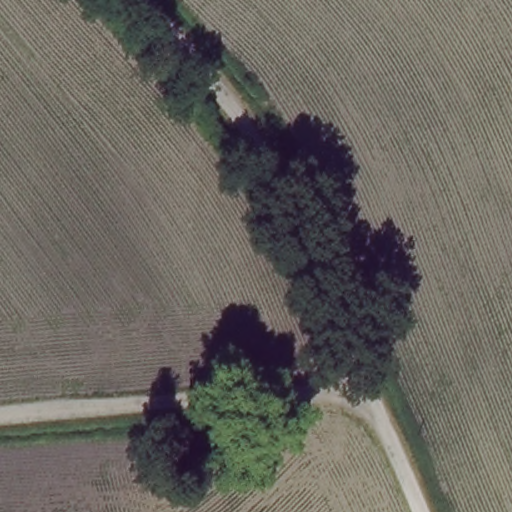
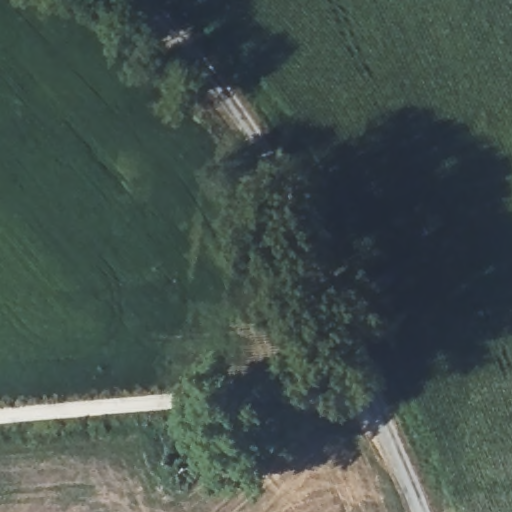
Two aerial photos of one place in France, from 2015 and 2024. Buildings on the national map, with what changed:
[]

